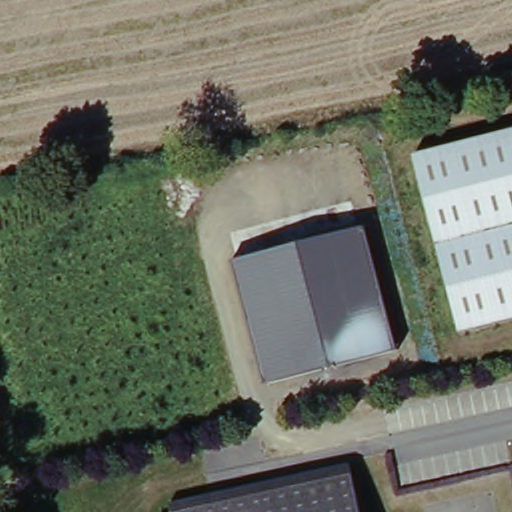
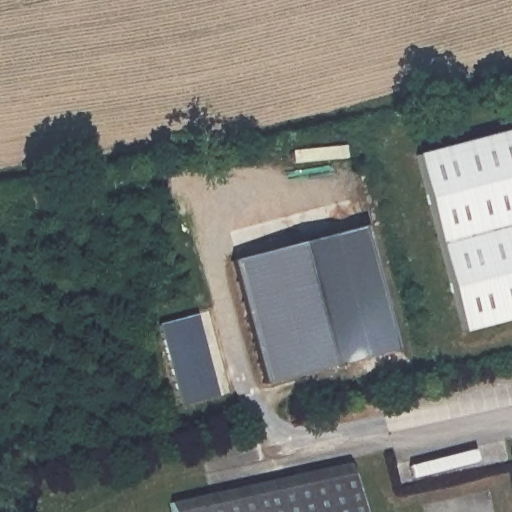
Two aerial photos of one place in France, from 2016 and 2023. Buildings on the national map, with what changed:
unchanged [(512,133),(512,324),(462,336),(416,159),(512,133)]
unchanged [(232,262),(236,260),(355,227),(366,224),(397,351),(263,384),(232,262)]
new [(211,312),(232,396),(182,408),(159,328),(211,312)]
unchanged [(213,500),(350,467),(360,512),(170,512),(170,511),(213,500)]

